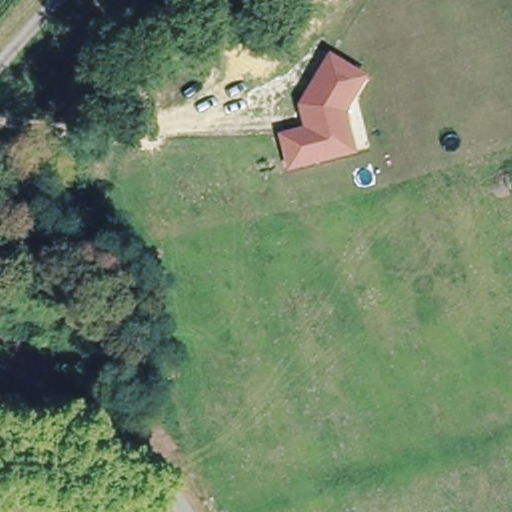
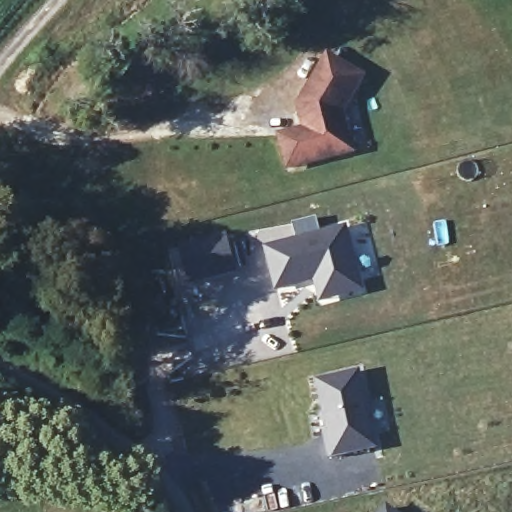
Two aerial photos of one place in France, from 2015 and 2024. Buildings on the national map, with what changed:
unchanged [(346,131),(350,151),(285,166),(278,135),(297,130),(298,134),(304,132),(297,104),(328,56),(362,77),(348,100),(340,111),(346,131)]
new [(366,291),(319,303),(313,283),(276,292),(264,247),(347,227),(366,291)]
new [(364,365),(381,449),(329,460),(314,376),(364,365)]
new [(401,512),(372,512),(383,498),(401,512)]

